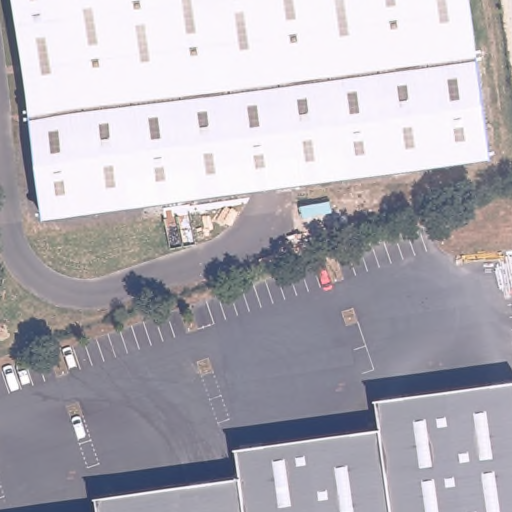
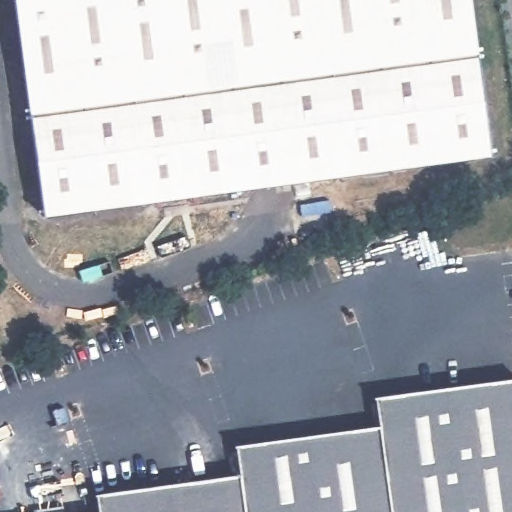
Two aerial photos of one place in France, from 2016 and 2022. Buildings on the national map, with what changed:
unchanged [(45,220),(15,0),(462,0),(479,160),(45,220)]
unchanged [(95,496),(238,476),(235,447),(378,428),(374,399),(512,380),(512,512),(97,512),(95,496)]

